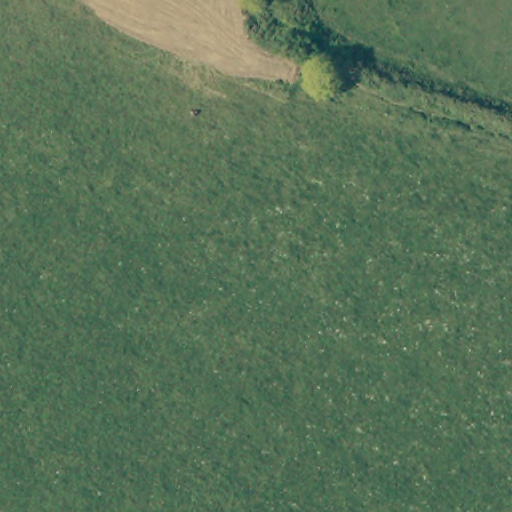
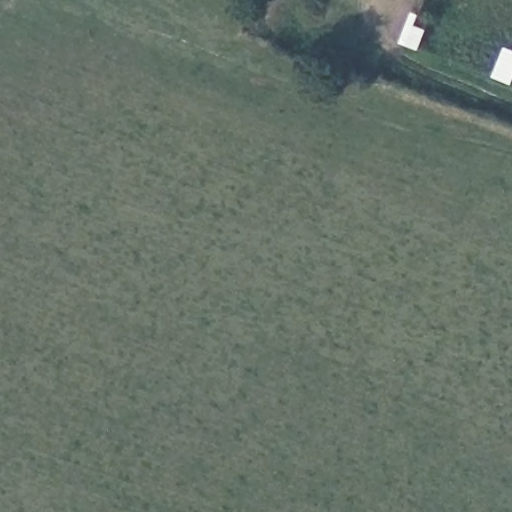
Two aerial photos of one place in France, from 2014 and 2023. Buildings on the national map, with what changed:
[]

